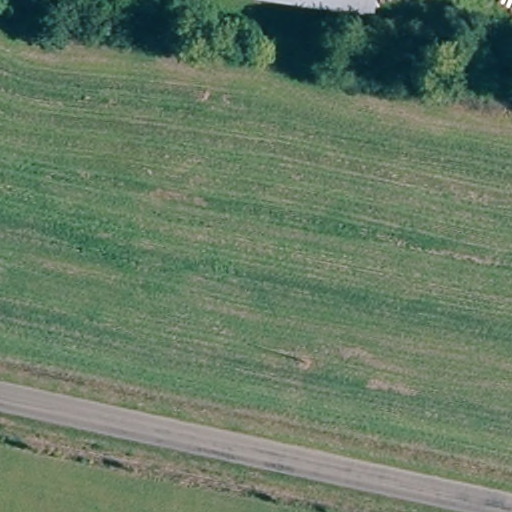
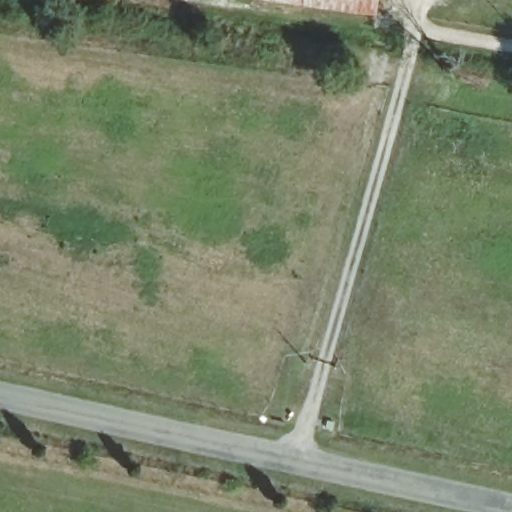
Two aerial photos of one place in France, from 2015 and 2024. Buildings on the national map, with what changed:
unchanged [(258,0),(376,0),(373,15),(258,0)]

